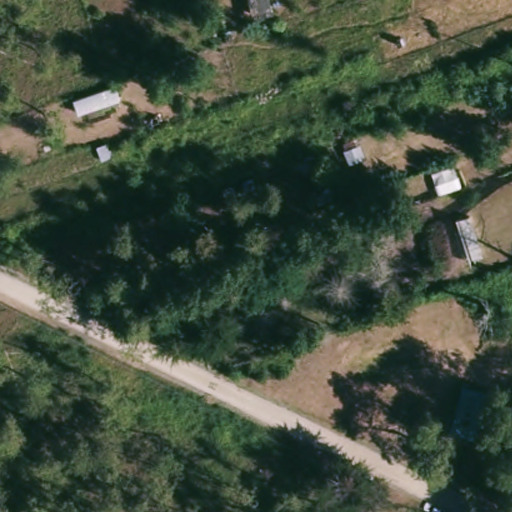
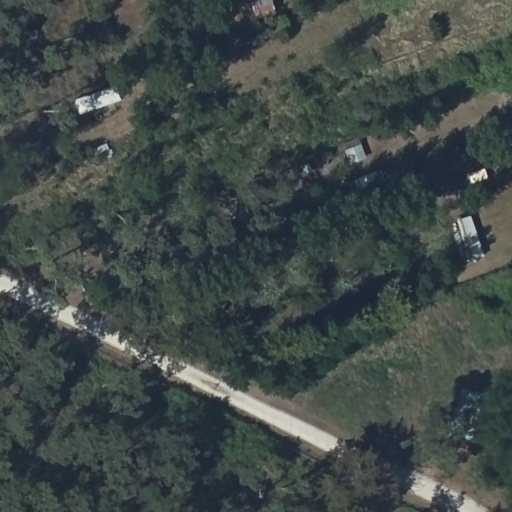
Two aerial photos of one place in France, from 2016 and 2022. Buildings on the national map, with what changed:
unchanged [(269,11),(251,16),(248,0),(266,0),(269,11)]

